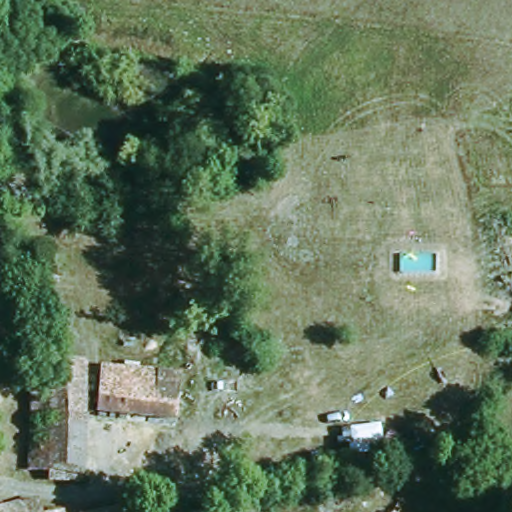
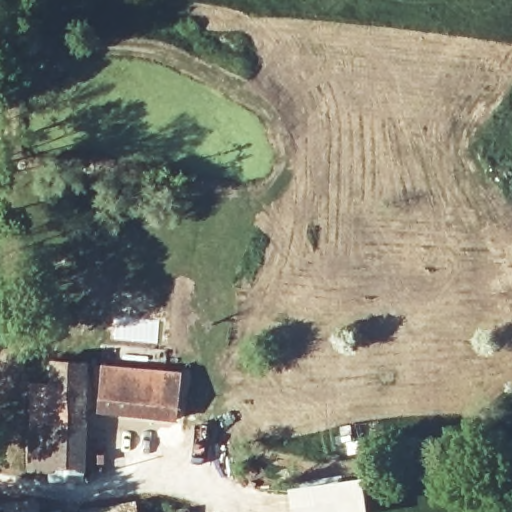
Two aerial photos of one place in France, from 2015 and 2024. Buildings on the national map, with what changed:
unchanged [(32,373),(48,372),(49,353),(80,354),(80,471),(48,471),(46,460),(31,459),(32,373)]
unchanged [(174,421),(97,413),(101,367),(179,373),(174,421)]
new [(353,425),(357,439),(360,439),(362,454),(344,457),(338,427),(353,425)]
unchanged [(0,468),(0,447),(23,445),(23,468),(0,468)]
new [(368,512),(291,512),(288,490),(363,480),(368,512)]
unchanged [(33,512),(0,512),(0,510),(31,504),(33,512)]
unchanged [(106,512),(132,508),(133,512),(106,512)]

